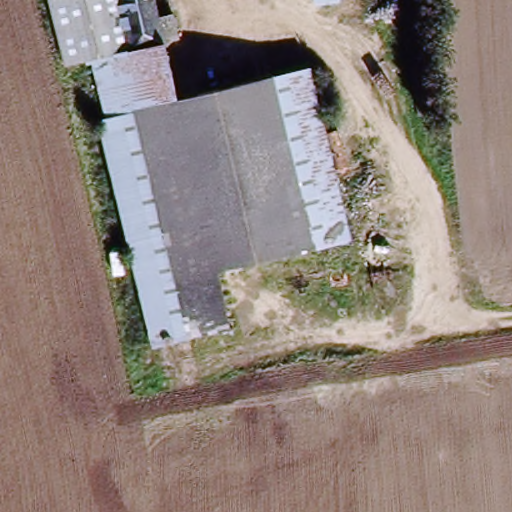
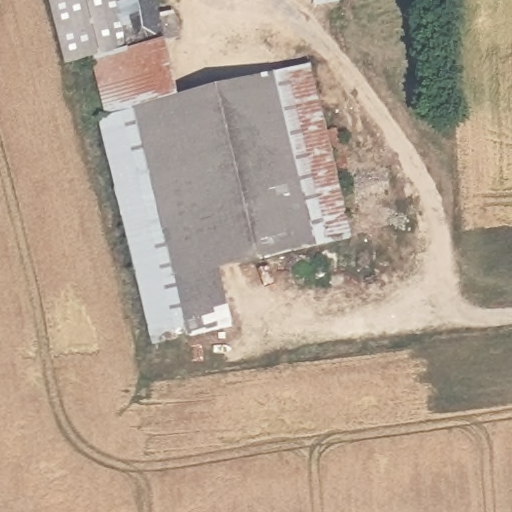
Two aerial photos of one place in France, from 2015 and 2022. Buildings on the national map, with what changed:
unchanged [(170,17),(176,41),(66,66),(51,0),(153,0),(157,20),(170,17)]
unchanged [(80,121),(66,66),(163,47),(176,101),(141,108),(94,119),(80,121)]
unchanged [(219,272),(180,281),(141,108),(176,101),(310,71),(331,169),(314,174),(331,247),(219,272)]
unchanged [(147,347),(145,338),(94,119),(141,108),(180,281),(219,272),(230,330),(184,338),(147,347)]
unchanged [(331,247),(314,174),(331,169),(348,243),(331,247)]

